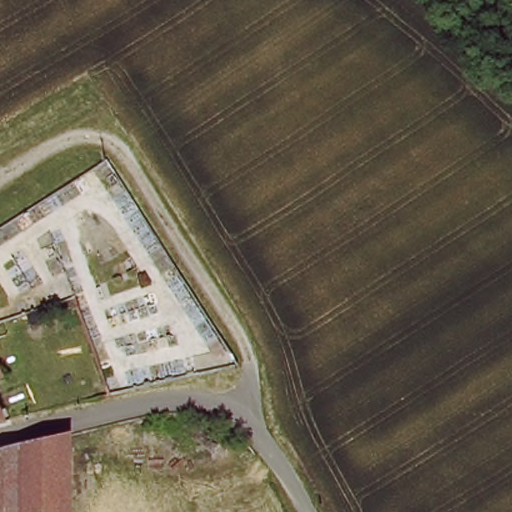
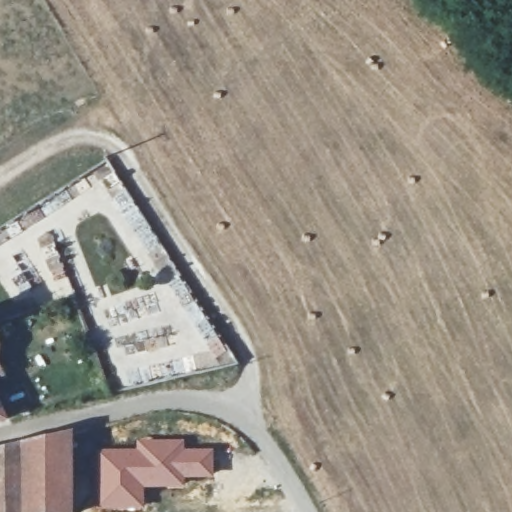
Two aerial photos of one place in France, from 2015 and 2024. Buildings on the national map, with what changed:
unchanged [(5,343),(2,354),(0,356),(0,332),(2,333),(5,343)]
unchanged [(0,377),(0,356),(2,354),(10,372),(0,377)]
unchanged [(0,417),(0,389),(12,414),(0,417)]
unchanged [(75,433),(75,436),(74,512),(0,512),(0,451),(37,441),(75,433)]
new [(100,447),(136,447),(136,437),(184,438),(185,448),(212,449),(213,477),(185,478),(184,487),(144,487),(145,509),(100,509),(100,447)]

